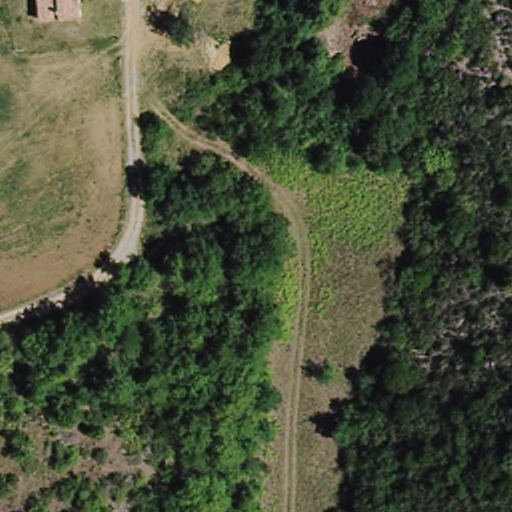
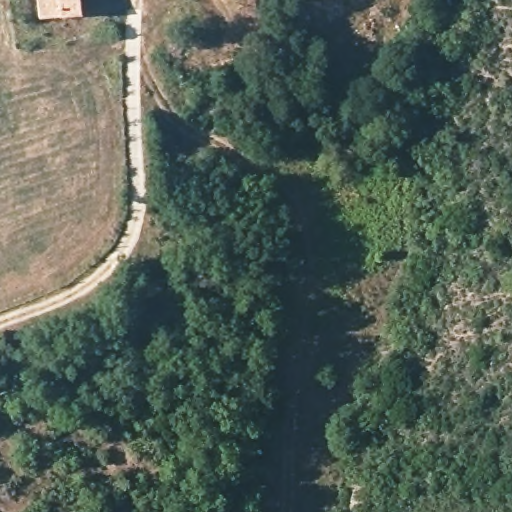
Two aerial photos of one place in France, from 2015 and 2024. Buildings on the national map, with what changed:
unchanged [(86,15),(35,23),(30,0),(81,0),(86,15)]

